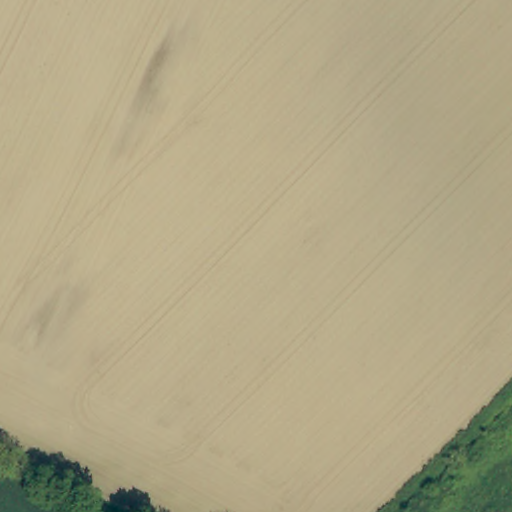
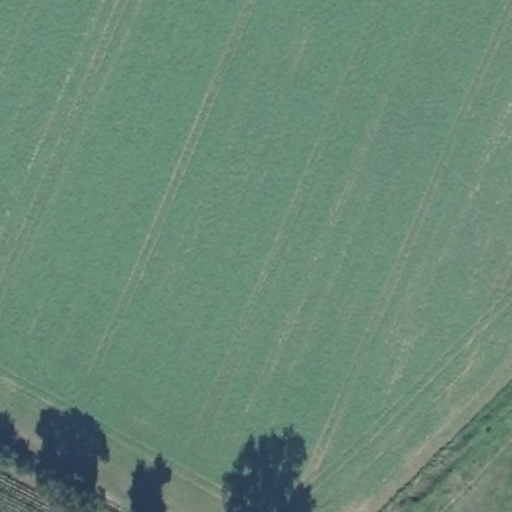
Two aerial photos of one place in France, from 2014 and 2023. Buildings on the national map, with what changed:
[]

